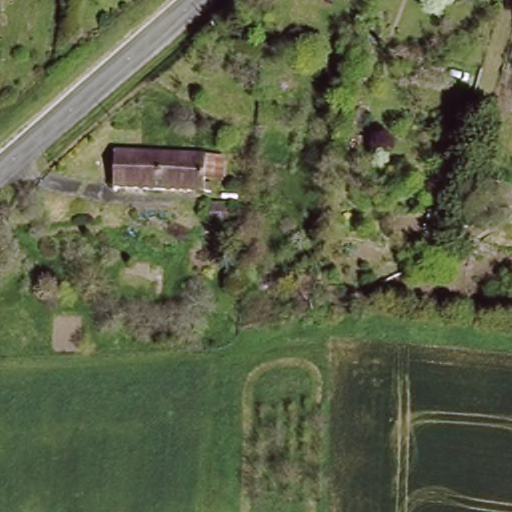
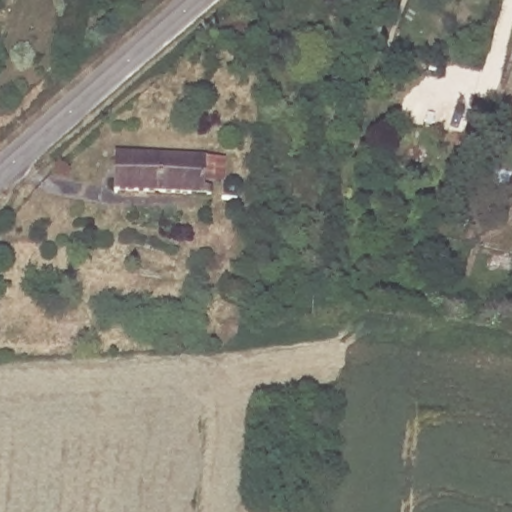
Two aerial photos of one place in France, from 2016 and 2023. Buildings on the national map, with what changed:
unchanged [(212,156),(208,193),(118,185),(122,148),(212,156)]

